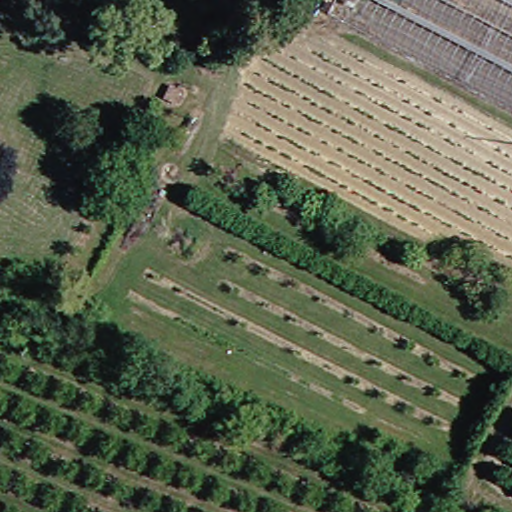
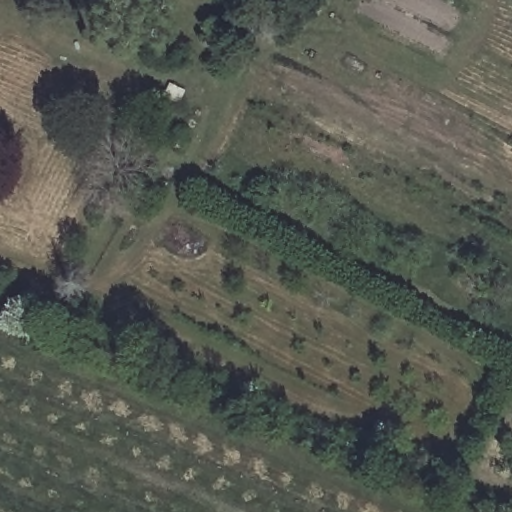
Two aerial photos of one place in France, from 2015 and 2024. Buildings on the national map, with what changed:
demolished [(323,9),(327,0),(512,0),(512,108),(323,9)]

